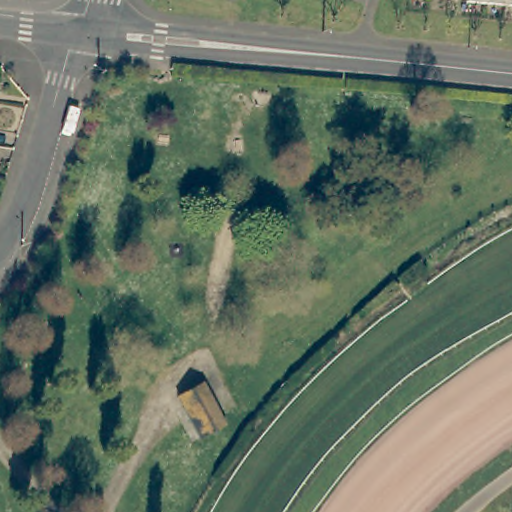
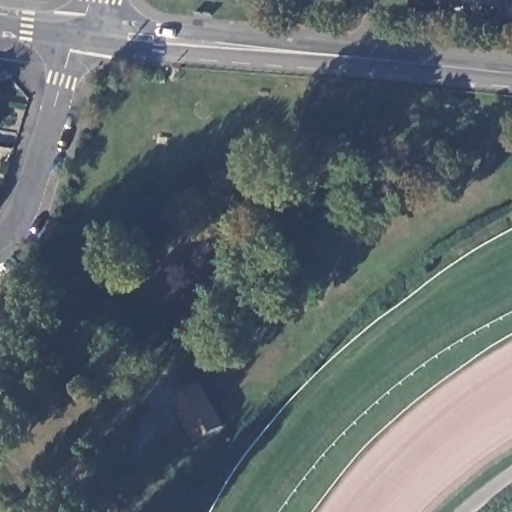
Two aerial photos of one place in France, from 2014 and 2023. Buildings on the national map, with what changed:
unchanged [(429,2),(408,0),(409,0),(429,0),(429,2)]
unchanged [(466,5),(467,0),(512,0),(512,10),(466,5)]
unchanged [(196,378),(221,419),(198,433),(173,393),(196,378)]

